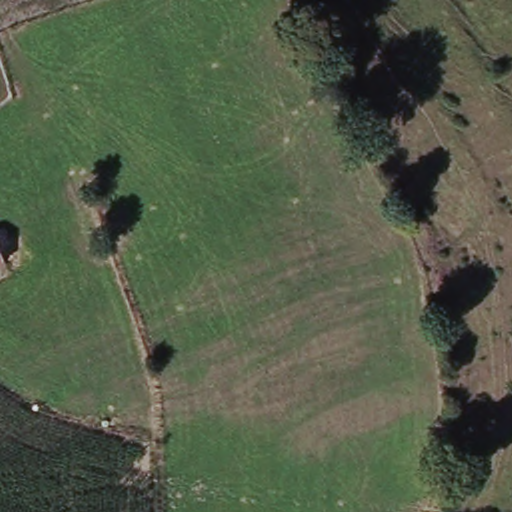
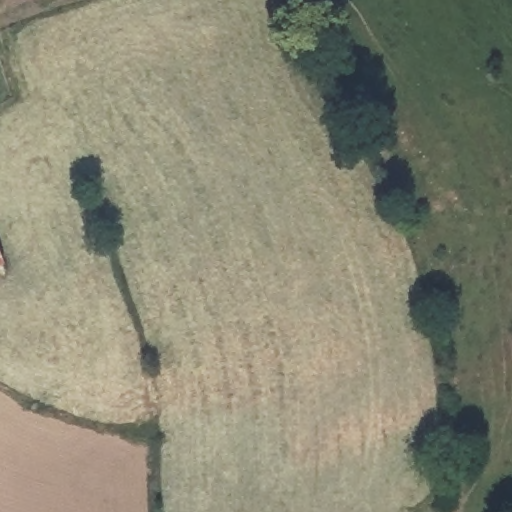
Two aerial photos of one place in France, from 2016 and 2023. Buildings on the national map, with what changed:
unchanged [(9,262),(0,265),(0,238),(9,262)]

